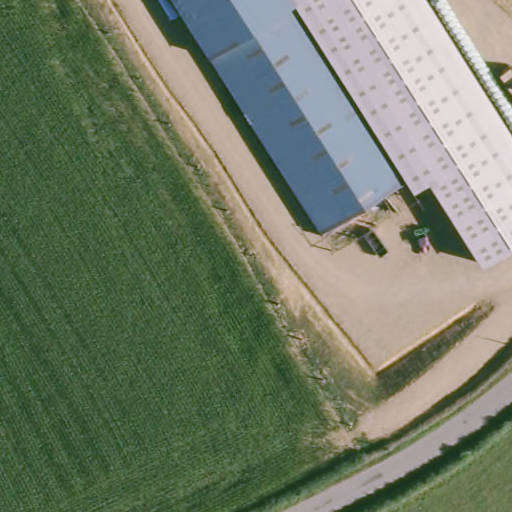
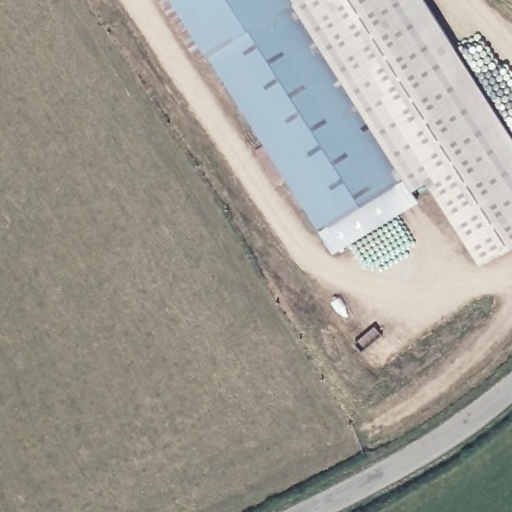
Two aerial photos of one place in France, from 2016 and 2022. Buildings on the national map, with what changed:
unchanged [(400,180),(316,233),(169,0),(287,0),(400,180)]
unchanged [(512,137),(512,244),(477,265),(424,182),(408,192),(400,180),(287,0),(426,0),(512,137)]

